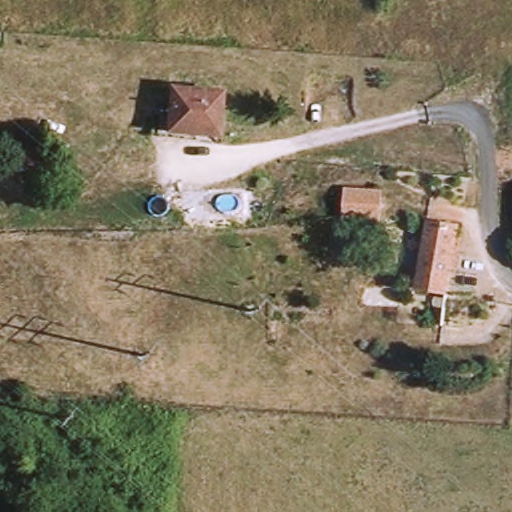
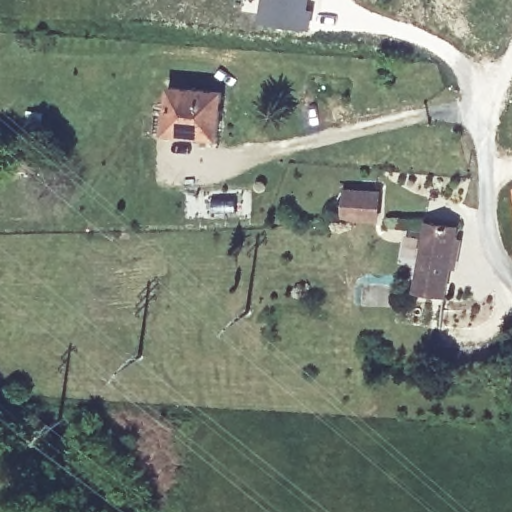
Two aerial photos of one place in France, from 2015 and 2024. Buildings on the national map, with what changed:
new [(311,0),(310,29),(258,22),(260,0),(311,0)]
unchanged [(225,136),(173,130),(178,87),(229,93),(225,136)]
unchanged [(344,194),(378,196),(377,222),(343,220),(344,194)]
unchanged [(419,226),(450,226),(449,294),(419,292),(419,226)]

